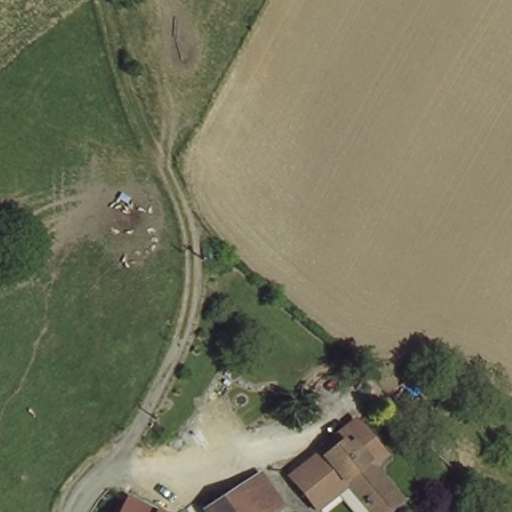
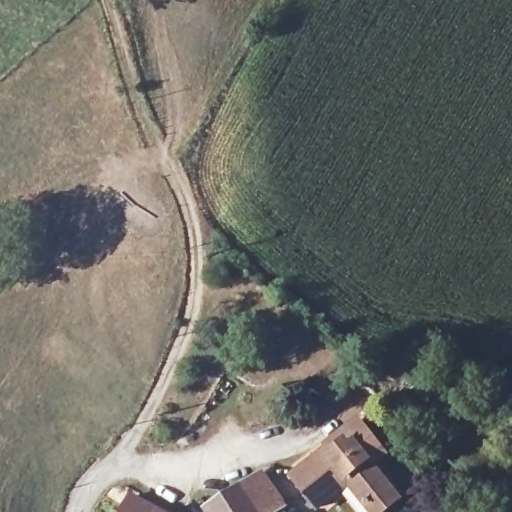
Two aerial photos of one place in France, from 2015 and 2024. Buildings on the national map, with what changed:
unchanged [(393,505),(384,512),(361,512),(358,510),(362,505),(345,482),(310,506),(285,472),(318,447),(350,424),(355,432),(373,457),(362,465),(393,505)]
unchanged [(280,512),(211,512),(210,510),(262,472),(287,507),(280,512)]
unchanged [(172,512),(111,512),(125,486),(172,512)]

